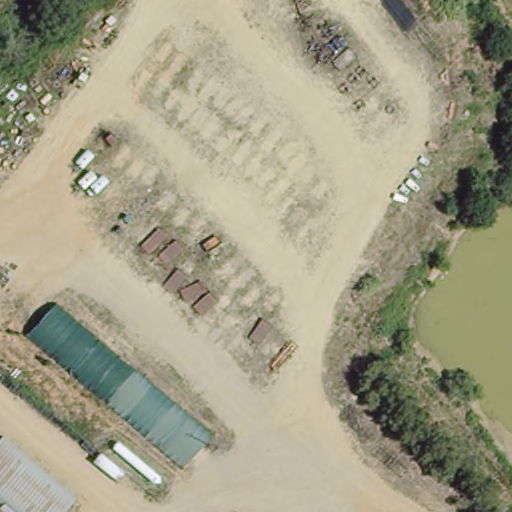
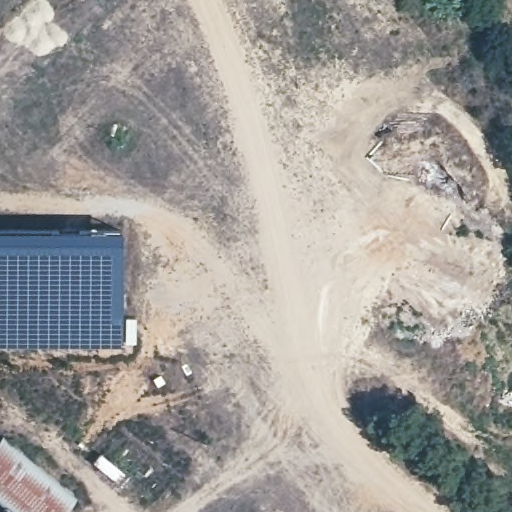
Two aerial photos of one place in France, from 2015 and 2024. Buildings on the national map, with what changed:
new [(124,230),(124,347),(0,347),(0,229),(124,230)]
demolished [(56,306),(218,438),(181,471),(25,339),(56,306)]
unchanged [(0,497),(0,443),(7,437),(81,499),(69,512),(19,512),(0,497)]

